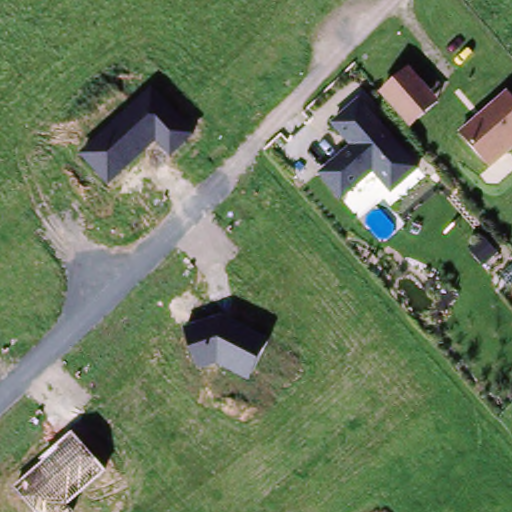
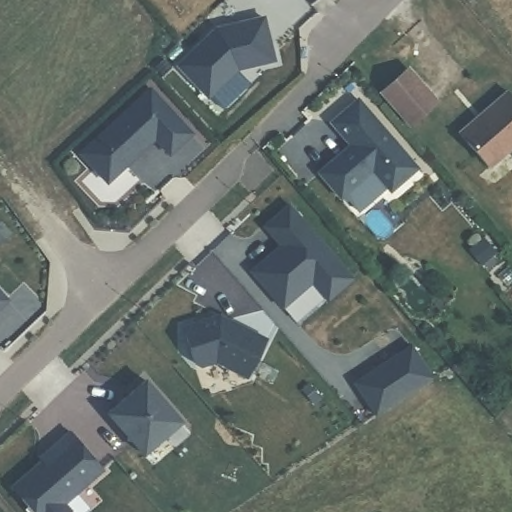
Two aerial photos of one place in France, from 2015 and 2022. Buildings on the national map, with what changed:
new [(215,29),(265,16),(275,62),(238,71),(208,100),(177,66),(215,29)]
unchanged [(375,94),(407,66),(439,101),(409,129),(375,94)]
unchanged [(79,155),(151,90),(195,133),(172,156),(156,141),(108,185),(79,155)]
unchanged [(488,169),(457,131),(506,91),(512,98),(512,149),(488,169)]
unchanged [(346,144),(331,125),(362,98),(420,166),(396,189),(379,171),(345,198),(316,169),(346,144)]
new [(285,249),(269,230),(293,209),(357,282),(331,304),(316,286),(287,311),(255,275),(285,249)]
new [(9,302),(0,310),(0,292),(9,302)]
unchanged [(193,365),(182,329),(225,316),(270,338),(249,379),(217,363),(200,368),(193,365)]
new [(413,342),(434,375),(378,412),(356,379),(413,342)]
new [(149,381),(187,426),(149,458),(113,413),(149,381)]
unchanged [(12,487),(43,461),(40,458),(70,431),(105,469),(66,503),(73,511),(71,512),(33,512),(12,487)]

